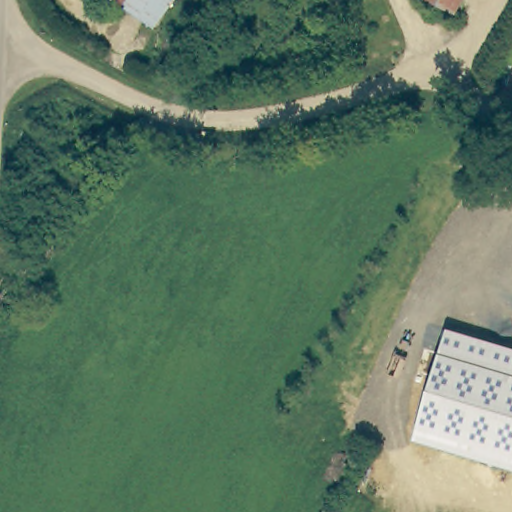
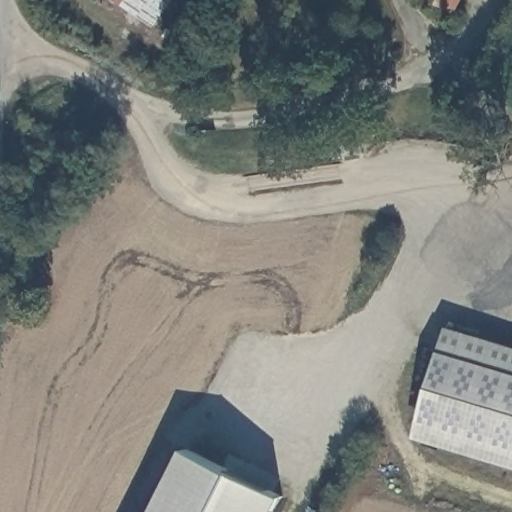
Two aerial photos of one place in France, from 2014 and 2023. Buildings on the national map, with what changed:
unchanged [(125,6),(118,0),(129,0),(125,6)]
unchanged [(129,0),(170,0),(151,25),(125,6),(129,0)]
unchanged [(458,11),(436,0),(463,0),(458,11)]
unchanged [(446,327),(512,347),(512,467),(413,438),(446,327)]
new [(153,512),(184,451),(281,499),(275,512),(153,512)]

